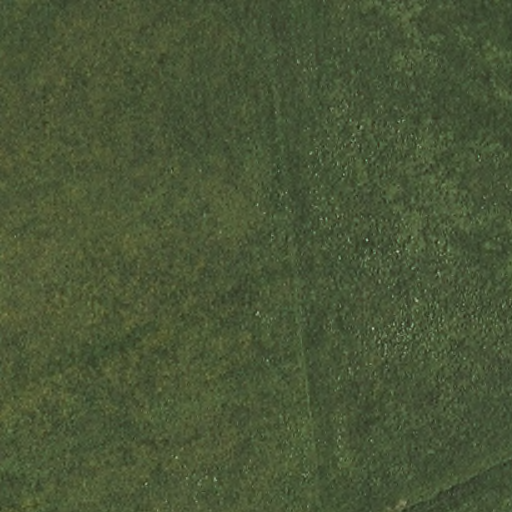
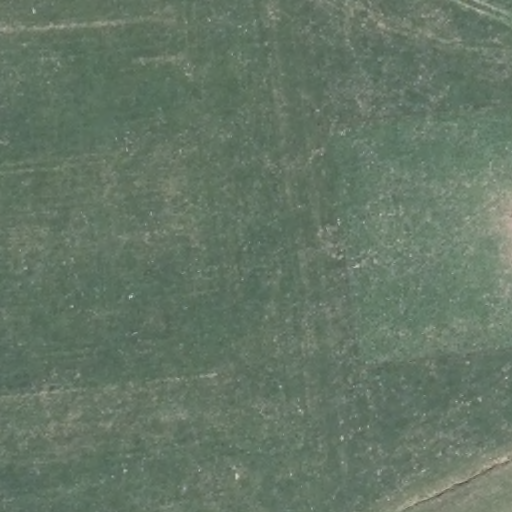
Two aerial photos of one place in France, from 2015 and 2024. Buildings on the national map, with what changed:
[]

